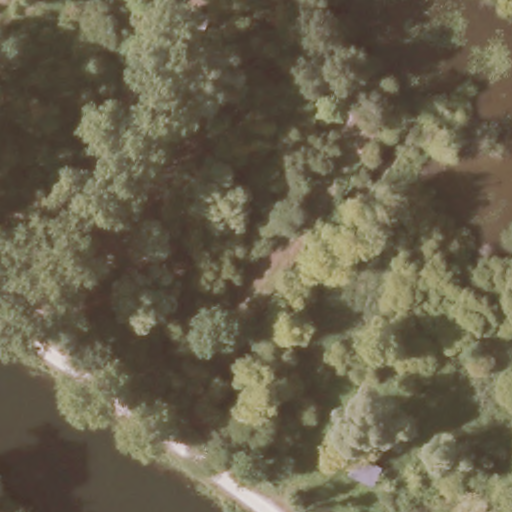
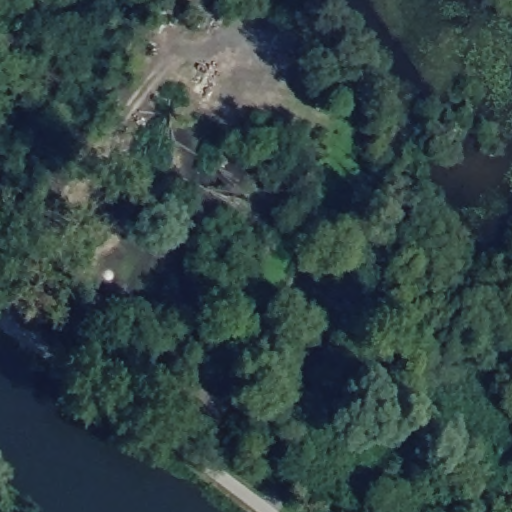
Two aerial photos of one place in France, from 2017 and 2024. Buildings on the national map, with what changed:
unchanged [(414,426),(389,461),(364,436),(384,401),(414,426)]

